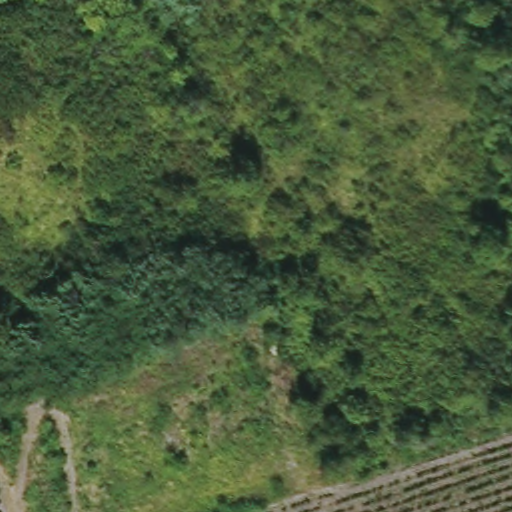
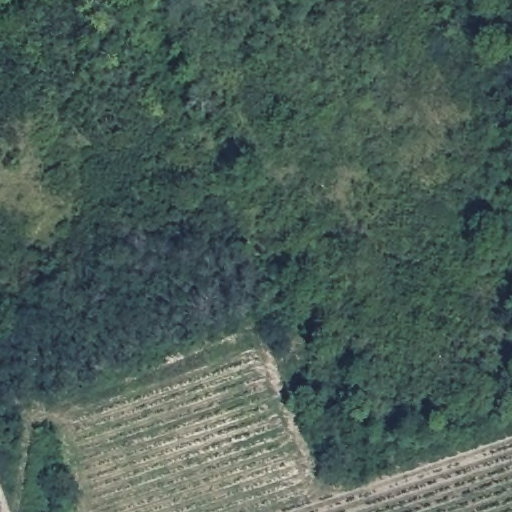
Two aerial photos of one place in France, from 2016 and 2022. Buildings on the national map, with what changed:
unchanged [(139,428),(146,443),(130,452),(122,434),(139,428)]

